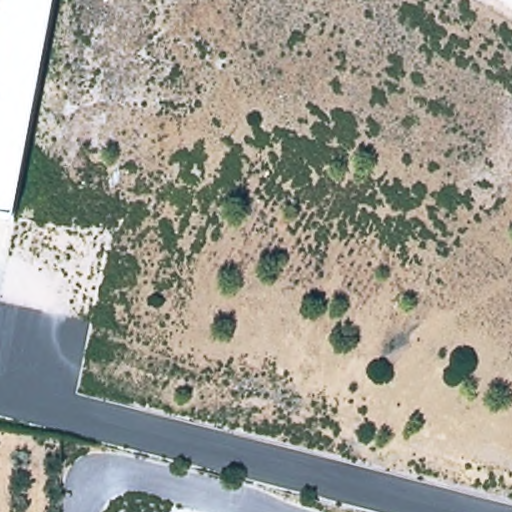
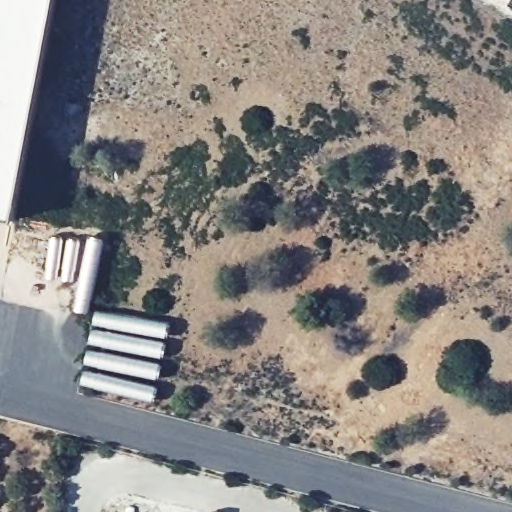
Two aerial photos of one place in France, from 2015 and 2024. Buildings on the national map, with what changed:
unchanged [(12,222),(0,220),(0,0),(54,0),(12,222)]

